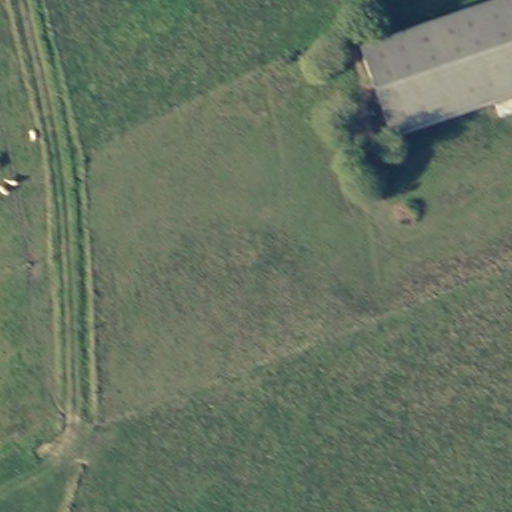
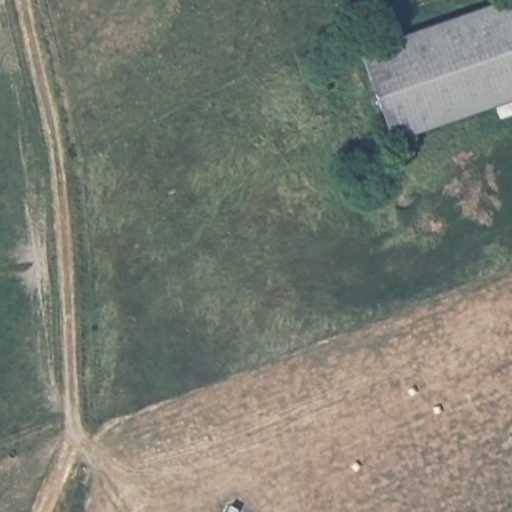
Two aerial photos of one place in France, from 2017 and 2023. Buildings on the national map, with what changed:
unchanged [(385,150),(354,55),(512,1),(512,104),(385,150)]

